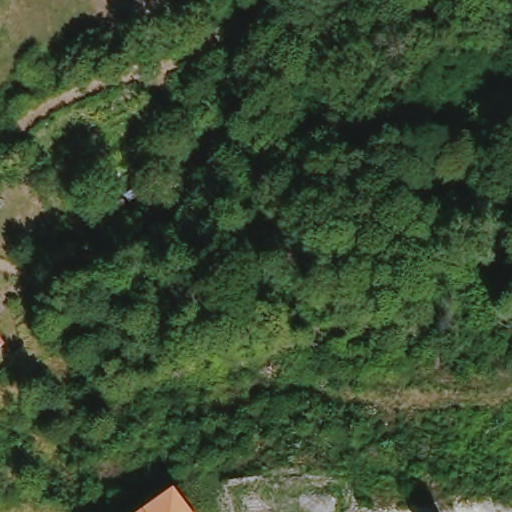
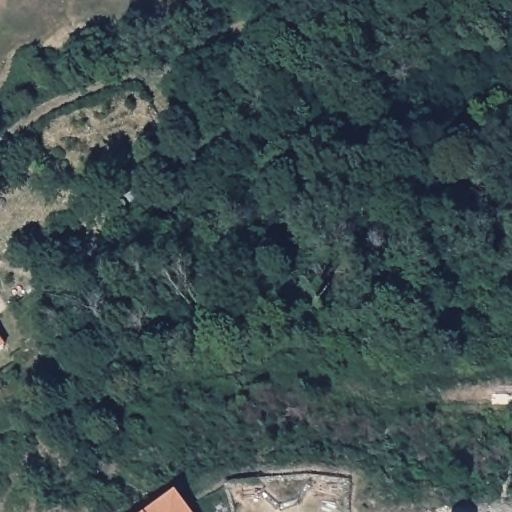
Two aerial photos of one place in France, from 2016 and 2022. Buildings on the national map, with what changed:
unchanged [(1,338),(0,338),(0,337),(1,338)]
unchanged [(1,394),(0,395),(0,393),(1,394)]
unchanged [(187,512),(148,512),(170,493),(187,512)]

